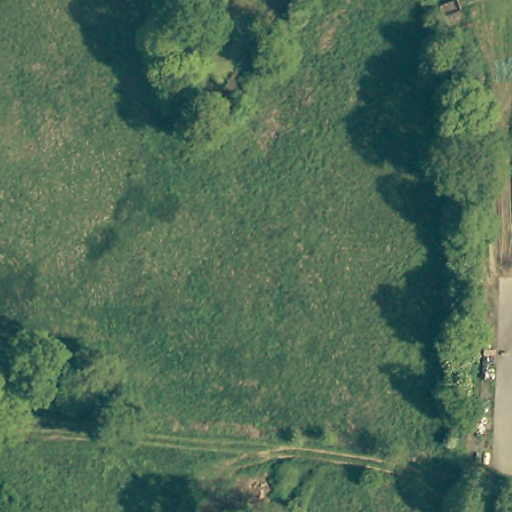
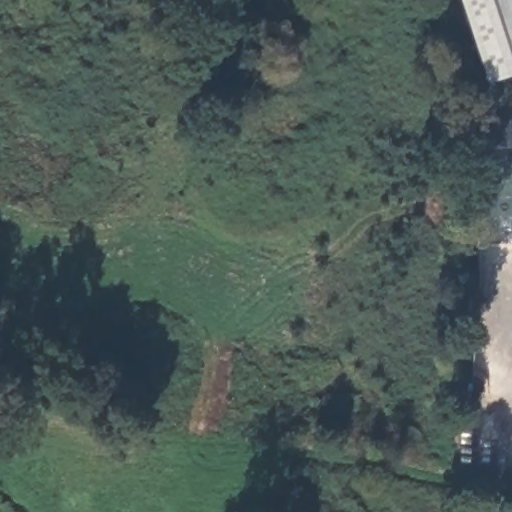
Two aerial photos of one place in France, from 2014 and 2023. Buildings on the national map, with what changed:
new [(459,0),(512,0),(512,71),(485,80),(459,0)]

